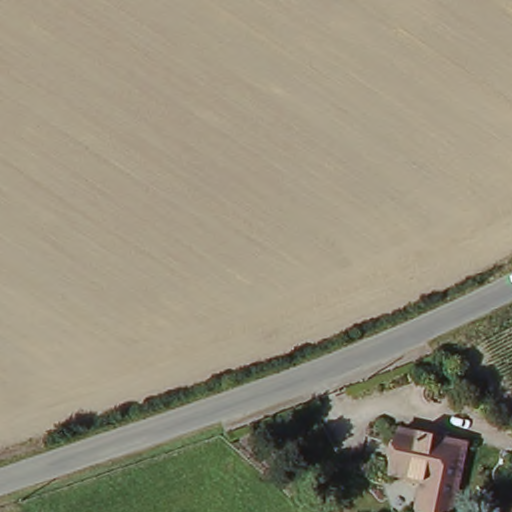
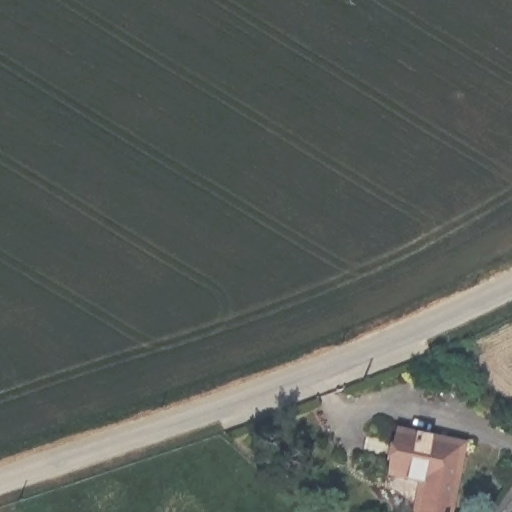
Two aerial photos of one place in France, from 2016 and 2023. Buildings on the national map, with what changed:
unchanged [(390,473),(398,429),(465,442),(452,512),(414,512),(420,479),(390,473)]

